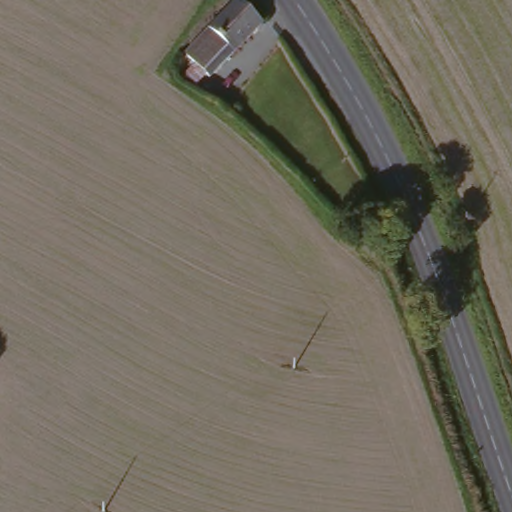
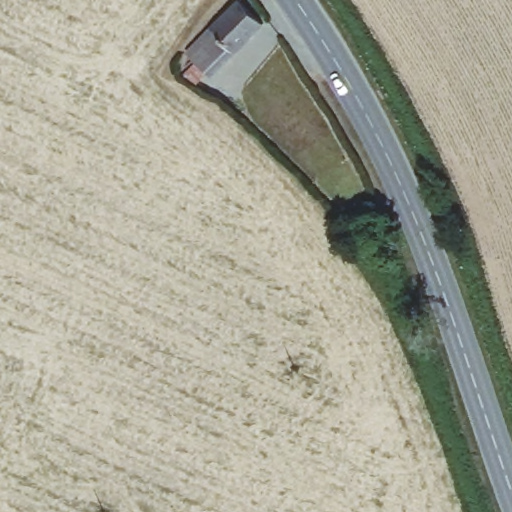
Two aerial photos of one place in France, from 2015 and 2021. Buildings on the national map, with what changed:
unchanged [(242,4),(260,26),(225,64),(220,60),(210,70),(191,51),(242,4)]

